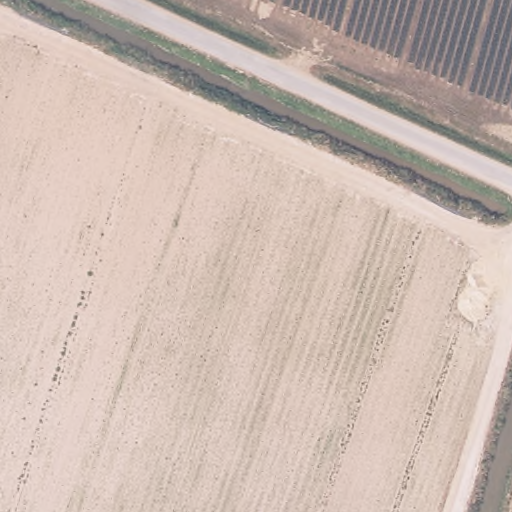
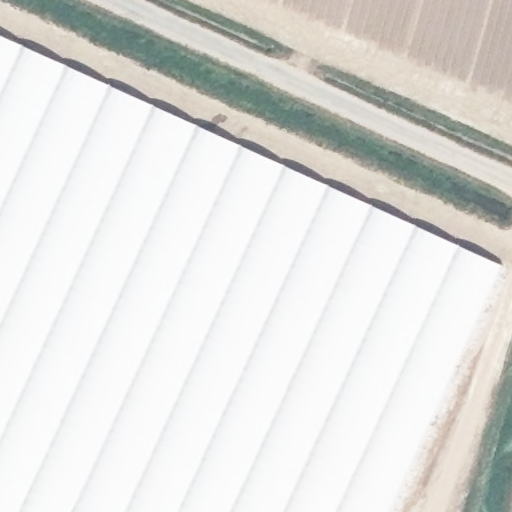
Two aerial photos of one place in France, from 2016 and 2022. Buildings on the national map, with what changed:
new [(387,512),(0,512),(0,36),(501,265),(387,512)]

